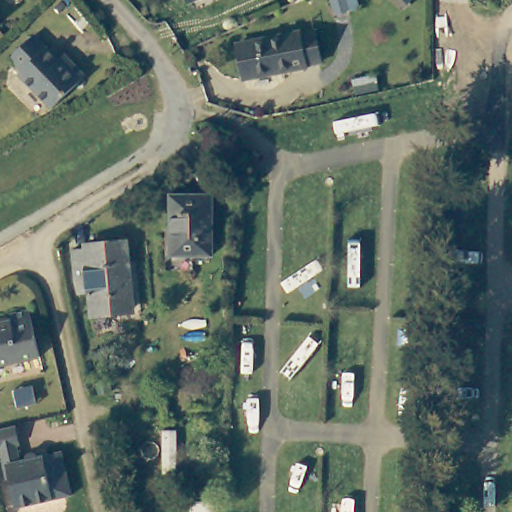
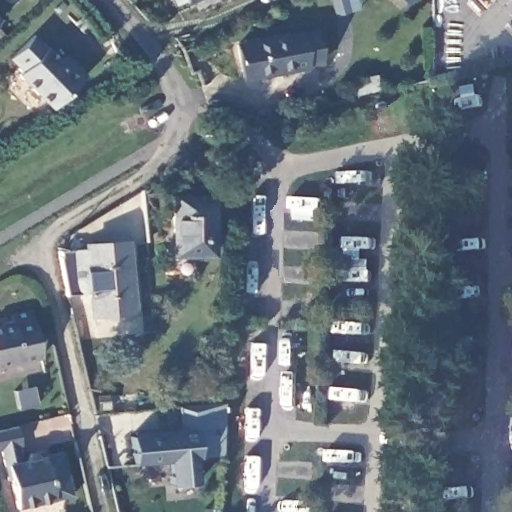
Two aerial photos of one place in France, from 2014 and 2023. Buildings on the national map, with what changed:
new [(183,0),(187,0),(183,1),(183,0)]
unchanged [(185,0),(203,0),(188,7),(185,0)]
unchanged [(332,20),(327,0),(360,0),(363,10),(332,20)]
unchanged [(400,0),(415,0),(406,8),(400,0)]
unchanged [(238,43),(299,24),(312,20),(322,54),(307,59),(247,77),(238,43)]
unchanged [(13,73),(17,69),(5,55),(27,32),(55,61),(60,56),(77,75),(45,106),(13,73)]
unchanged [(172,256),(174,198),(215,202),(212,258),(172,256)]
unchanged [(130,311),(95,311),(93,290),(84,290),(75,277),(74,248),(89,247),(89,242),(126,240),(130,311)]
unchanged [(9,357),(10,364),(0,366),(0,325),(22,321),(28,353),(9,357)]
new [(225,455),(197,458),(200,480),(196,484),(170,486),(168,462),(133,465),(131,435),(182,431),(177,406),(224,403),(225,455)]
unchanged [(18,440),(13,443),(19,458),(24,456),(24,452),(27,448),(31,449),(35,453),(60,447),(70,490),(16,504),(8,475),(4,476),(0,458),(0,425),(13,422),(18,440)]
demolished [(192,506),(218,508),(218,512),(192,512),(192,506)]

